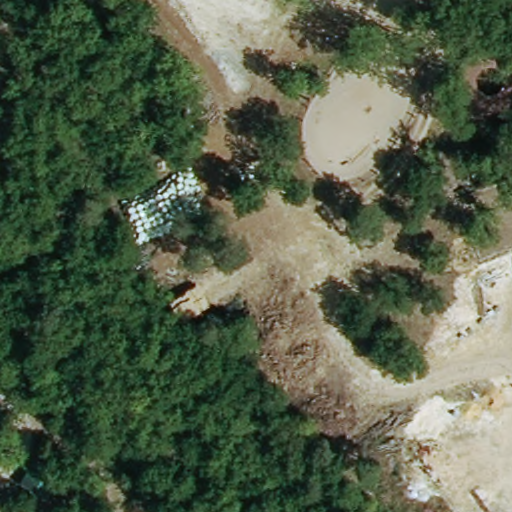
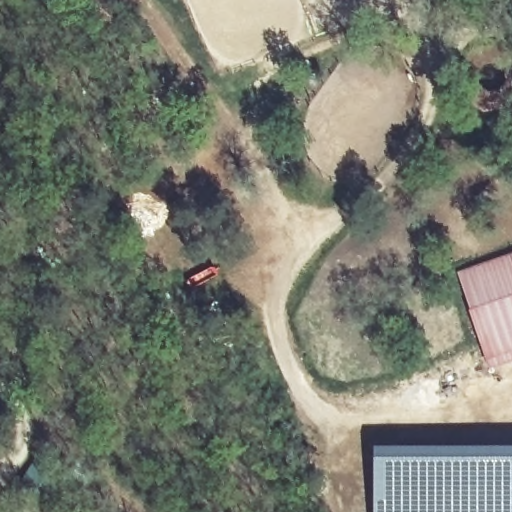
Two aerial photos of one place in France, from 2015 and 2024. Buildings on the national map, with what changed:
unchanged [(509,105),(486,108),(467,94),(462,71),(476,52),(499,47),(512,57),(512,100),(509,105)]
new [(372,445),(512,446),(512,512),(372,512),(372,445)]

